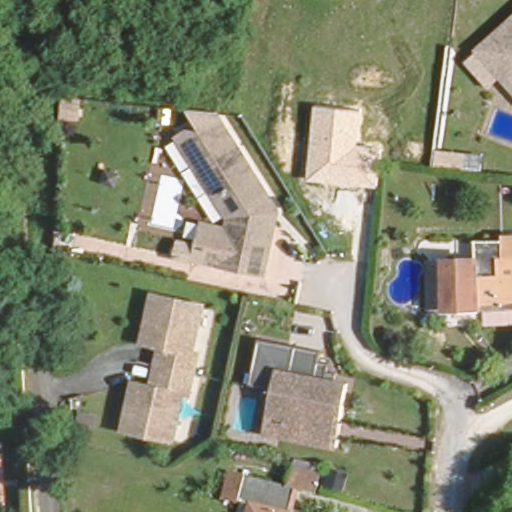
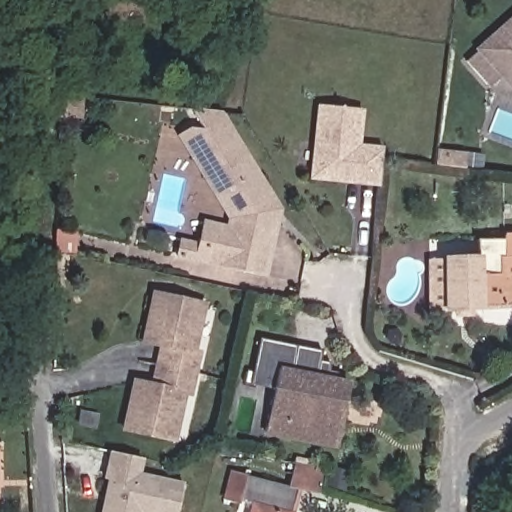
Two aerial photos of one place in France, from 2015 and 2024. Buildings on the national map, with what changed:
unchanged [(498,78),(486,85),(463,57),(512,13),(512,90),(498,78)]
unchanged [(381,146),(378,186),(308,181),(315,106),(362,110),(359,145),(381,146)]
unchanged [(233,218),(182,134),(191,126),(234,131),(275,198),(282,209),(279,220),(267,276),(223,266),(223,263),(201,259),(204,245),(209,223),(231,227),(233,218)]
unchanged [(431,259),(449,258),(482,257),(481,240),(508,239),(508,237),(512,236),(512,307),(450,309),(432,310),(431,259)]
unchanged [(198,299),(188,346),(194,348),(189,368),(158,361),(162,342),(138,337),(148,288),(198,299)]
unchanged [(331,379),(353,383),(342,448),(339,448),(290,439),(269,436),(276,393),(252,388),(256,366),(261,340),(325,351),(323,361),(333,363),(331,379)]
unchanged [(189,368),(185,389),(179,388),(169,435),(118,424),(129,375),(154,381),(158,361),(189,368)]
unchanged [(97,414),(94,427),(79,424),(82,410),(97,414)]
new [(142,459),(140,473),(182,483),(176,512),(100,512),(107,481),(102,480),(109,451),(142,459)]
unchanged [(294,512),(248,512),(249,506),(222,500),(226,471),(290,485),(297,464),(324,469),(320,497),(298,492),(294,512)]

